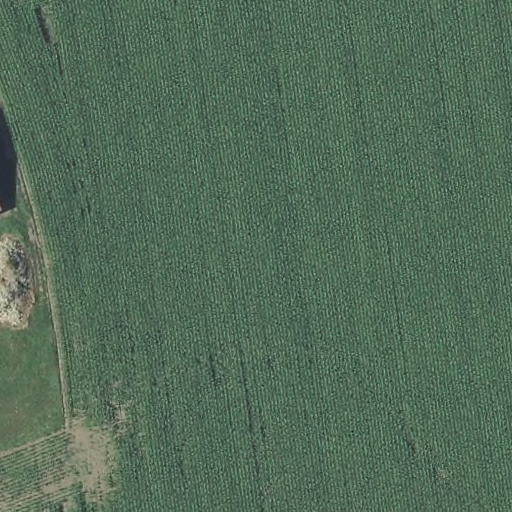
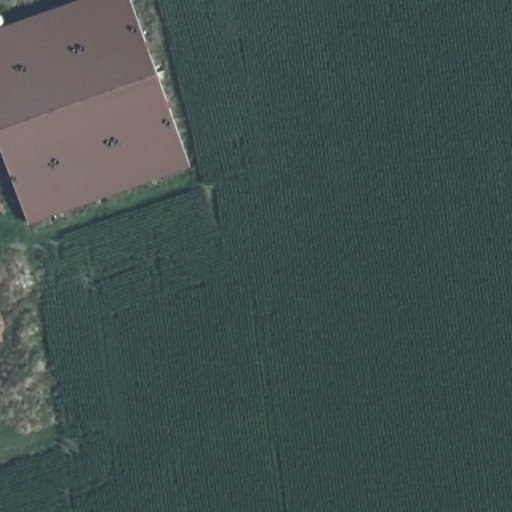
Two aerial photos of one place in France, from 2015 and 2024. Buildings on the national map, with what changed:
new [(192,169),(31,224),(0,140),(0,30),(82,0),(131,0),(192,169)]
unchanged [(4,211),(0,212),(0,201),(4,211)]

